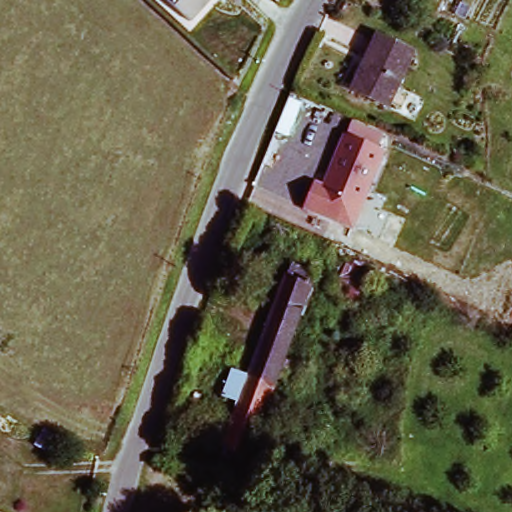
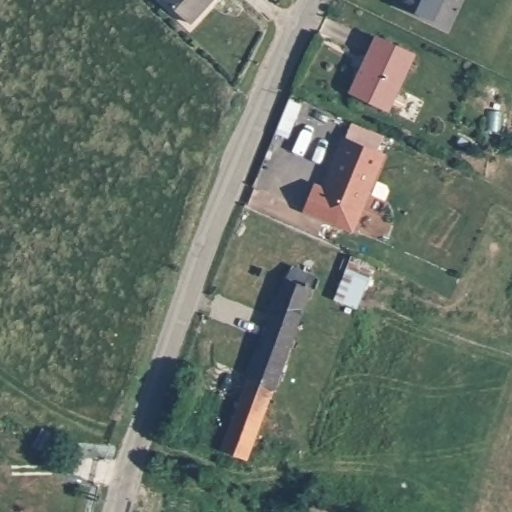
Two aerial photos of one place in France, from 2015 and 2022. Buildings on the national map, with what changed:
unchanged [(188,23),(163,0),(210,0),(188,23)]
new [(431,20),(399,4),(400,0),(440,0),(431,20)]
unchanged [(376,39),(413,55),(389,110),(353,94),(376,39)]
unchanged [(383,136),(378,150),(384,154),(354,232),(304,214),(314,179),(326,183),(344,137),(346,138),(353,124),(383,136)]
unchanged [(333,296),(351,254),(371,264),(353,305),(333,296)]
unchanged [(241,477),(218,468),(244,391),(278,294),(283,296),(288,282),(308,289),(276,377),(294,384),(286,404),(274,437),(258,430),(241,477)]

